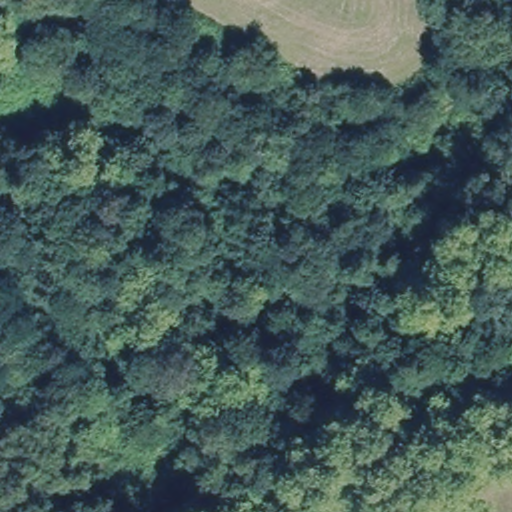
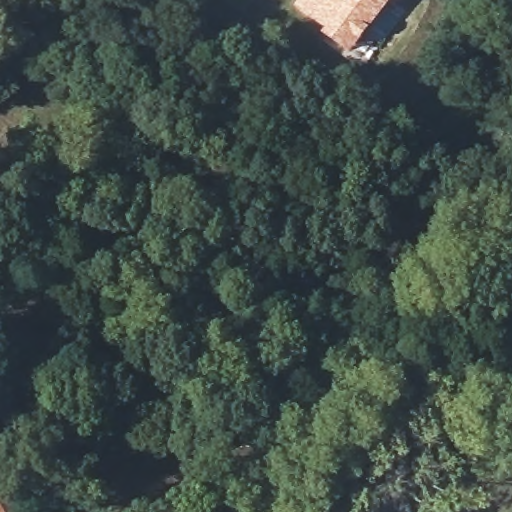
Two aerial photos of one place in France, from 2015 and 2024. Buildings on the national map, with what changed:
new [(297,0),(342,0),(344,2),(345,0),(393,0),(348,57),(320,35),(322,31),(292,6),(297,0)]
new [(400,2),(397,0),(401,0),(400,2)]
unchanged [(0,512),(0,494),(8,512),(0,512)]

